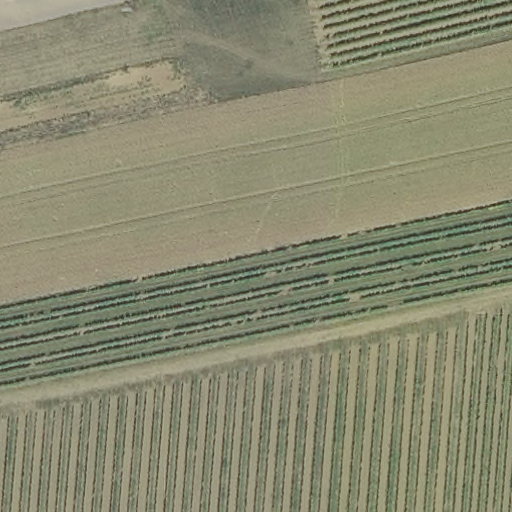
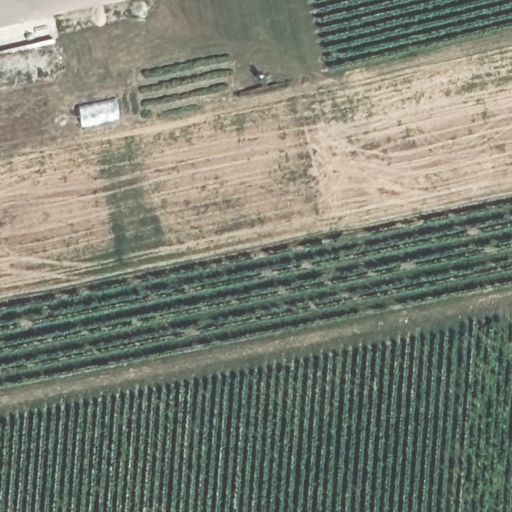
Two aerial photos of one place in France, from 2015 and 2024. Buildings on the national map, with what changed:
[]

